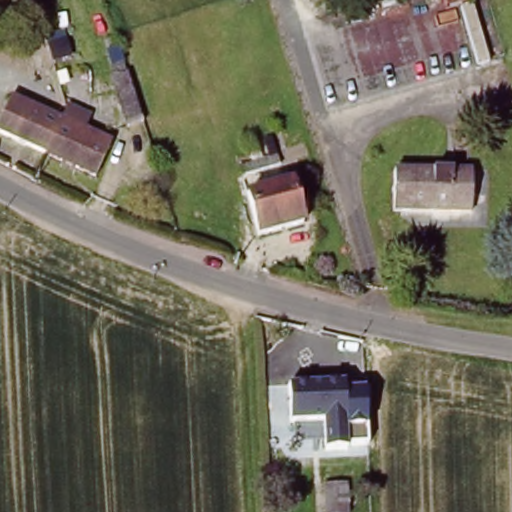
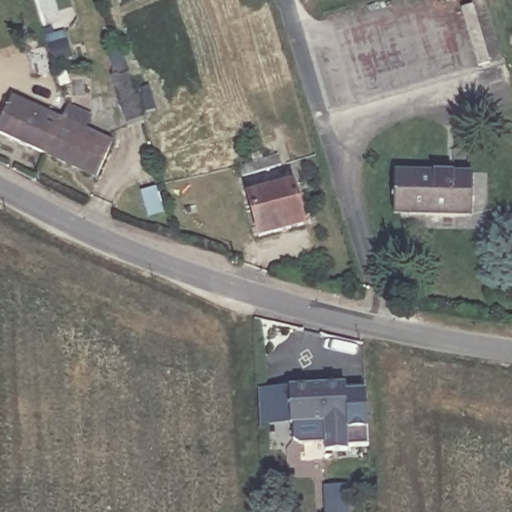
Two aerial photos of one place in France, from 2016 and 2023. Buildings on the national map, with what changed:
unchanged [(144,122),(127,127),(110,77),(127,71),(144,122)]
unchanged [(45,159),(0,138),(0,121),(10,101),(62,125),(45,159)]
unchanged [(111,147),(95,182),(45,159),(62,125),(111,147)]
unchanged [(277,152),(280,164),(242,175),(238,164),(277,152)]
unchanged [(394,216),(394,174),(469,177),(469,220),(418,217),(394,216)]
unchanged [(247,197),(290,186),(302,227),(259,239),(247,197)]
unchanged [(283,383),(290,382),(337,381),(340,418),(285,421),(284,396),(283,383)]
unchanged [(322,488),(347,487),(348,512),(323,512),(322,488)]

